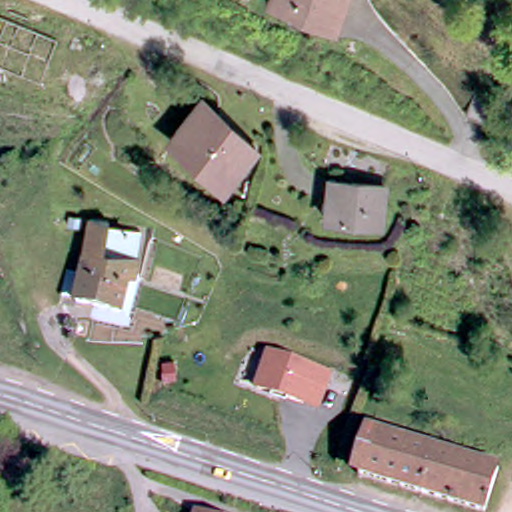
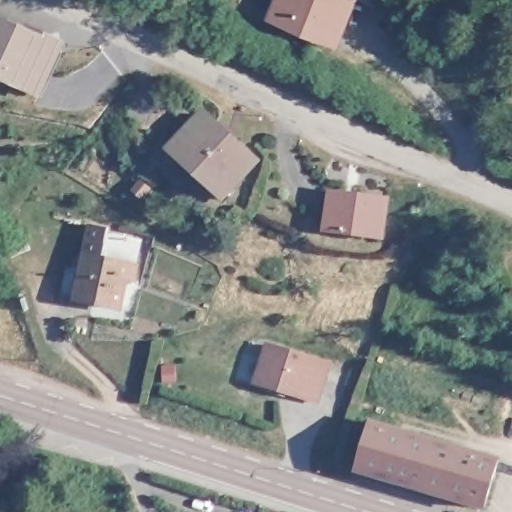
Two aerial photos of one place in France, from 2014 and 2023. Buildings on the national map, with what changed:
unchanged [(353,6),(340,45),(279,24),(288,0),(334,0),(353,6)]
new [(30,29),(32,26),(66,41),(42,99),(0,81),(0,16),(30,29)]
unchanged [(502,108),(487,139),(467,130),(481,98),(502,108)]
unchanged [(228,197),(175,150),(205,117),(256,164),(228,197)]
unchanged [(339,197),(393,205),(390,241),(335,236),(339,197)]
unchanged [(83,271),(94,226),(111,229),(110,236),(142,243),(135,281),(126,279),(119,310),(77,301),(77,297),(62,293),(68,268),(83,271)]
unchanged [(301,399),(255,384),(266,347),(327,366),(322,383),(315,404),(301,399)]
unchanged [(373,412),(356,406),(359,399),(376,405),(373,412)]
unchanged [(422,495),(360,474),(376,428),(437,448),(422,495)]
unchanged [(503,445),(512,448),(512,454),(501,450),(503,445)]
unchanged [(488,512),(475,512),(422,495),(437,448),(501,469),(488,512)]

